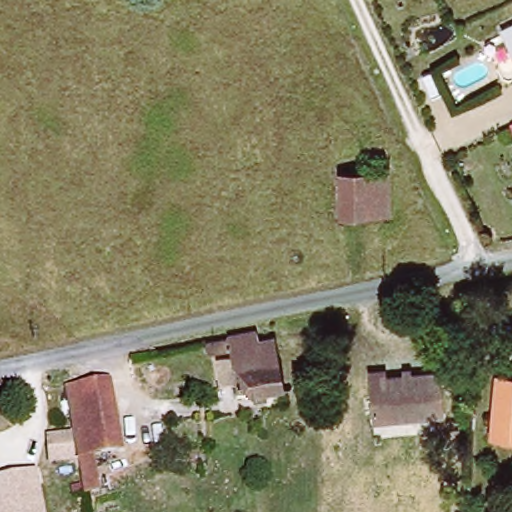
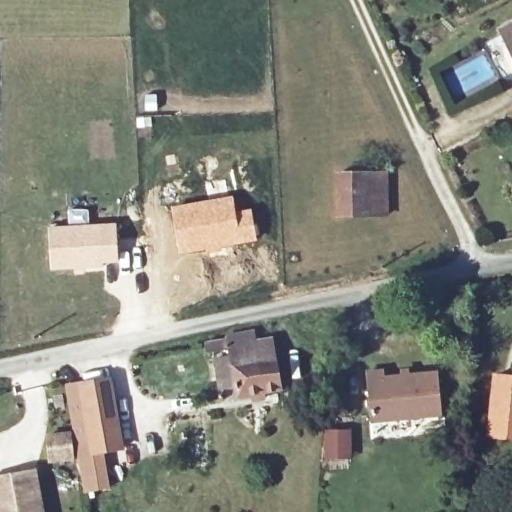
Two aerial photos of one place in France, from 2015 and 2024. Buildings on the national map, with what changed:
unchanged [(512,27),(512,59),(498,34),(512,27)]
unchanged [(344,178),(381,176),(380,216),(344,217),(344,178)]
new [(233,195),(236,210),(251,208),(257,242),(179,256),(170,205),(233,195)]
new [(68,224),(67,208),(89,208),(90,224),(117,223),(119,264),(74,272),(73,269),(50,270),(47,225),(68,224)]
unchanged [(264,399),(238,403),(230,354),(199,361),(197,351),(257,338),(259,347),(275,346),(278,364),(283,396),(264,399)]
unchanged [(442,417),(372,425),(365,375),(383,373),(384,381),(437,373),(442,417)]
unchanged [(64,384),(115,375),(126,449),(96,455),(101,491),(84,495),(64,384)]
unchanged [(512,376),(512,436),(490,434),(496,375),(512,376)]
unchanged [(0,466),(53,455),(64,512),(9,512),(0,466)]
unchanged [(437,500),(462,503),(461,512),(437,512),(437,500)]

